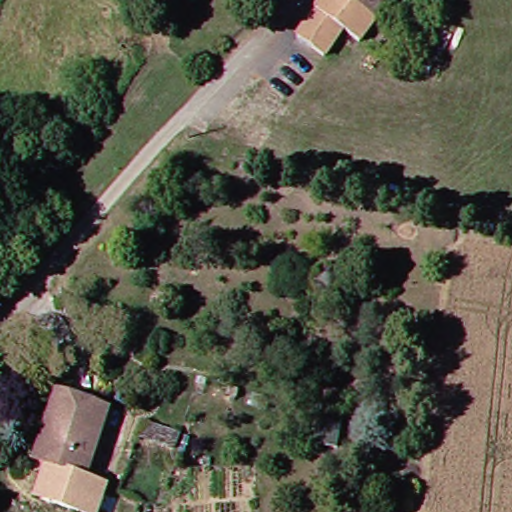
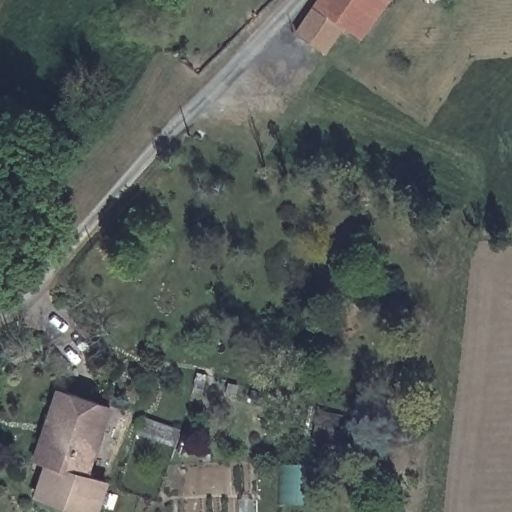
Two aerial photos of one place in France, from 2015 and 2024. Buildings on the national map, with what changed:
unchanged [(342,40),(329,59),(299,36),(325,0),(394,0),(359,51),(342,40)]
unchanged [(37,490),(46,462),(44,461),(33,458),(55,390),(67,393),(109,406),(88,475),(106,480),(99,503),(96,512),(93,512),(54,499),(36,494),(37,490)]

